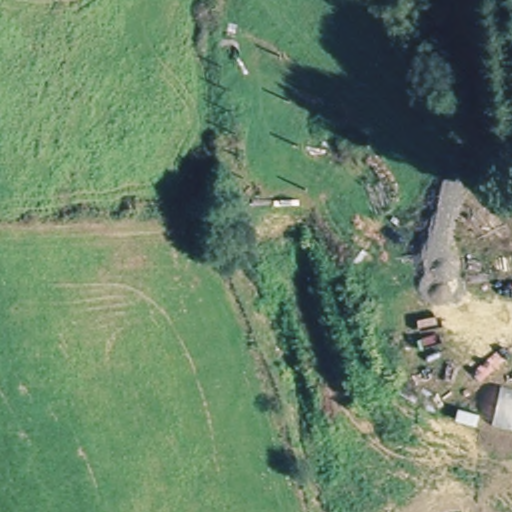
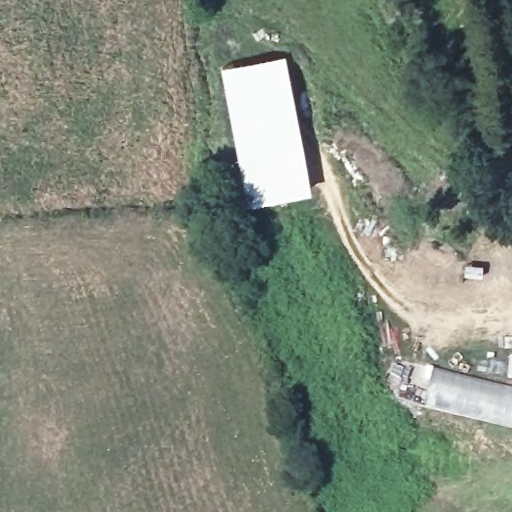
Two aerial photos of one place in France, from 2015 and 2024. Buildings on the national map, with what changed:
new [(285,55),(312,192),(248,204),(237,157),(220,67),(285,55)]
new [(492,422),(423,407),(432,369),(502,387),(492,422)]
unchanged [(512,389),(512,427),(492,422),(502,387),(512,389)]

